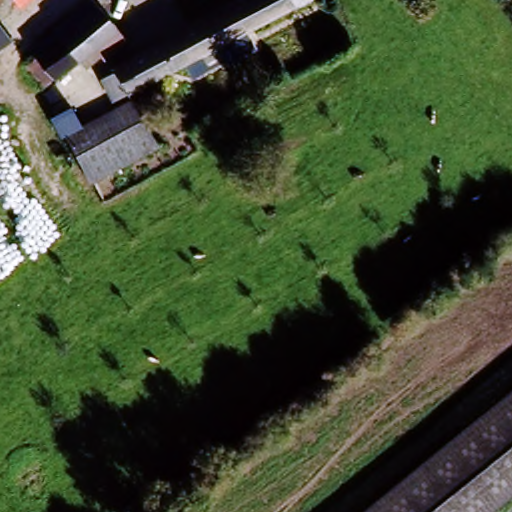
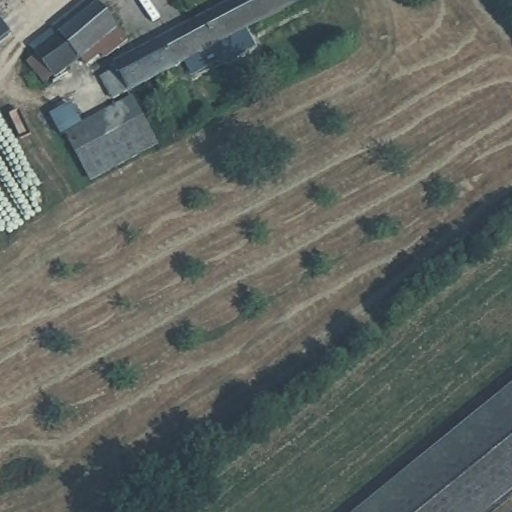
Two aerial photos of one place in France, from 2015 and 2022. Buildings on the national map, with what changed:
unchanged [(243,0),(303,0),(237,34),(242,43),(215,58),(208,50),(130,89),(114,97),(101,72),(117,63),(243,0)]
unchanged [(74,73),(57,54),(67,45),(59,36),(94,6),(101,14),(118,32),(129,44),(109,62),(98,51),(74,73)]
unchanged [(0,38),(0,15),(11,29),(0,38)]
unchanged [(113,105),(137,149),(87,175),(64,131),(113,105)]
unchanged [(360,512),(512,391),(512,492),(487,512),(360,512)]

